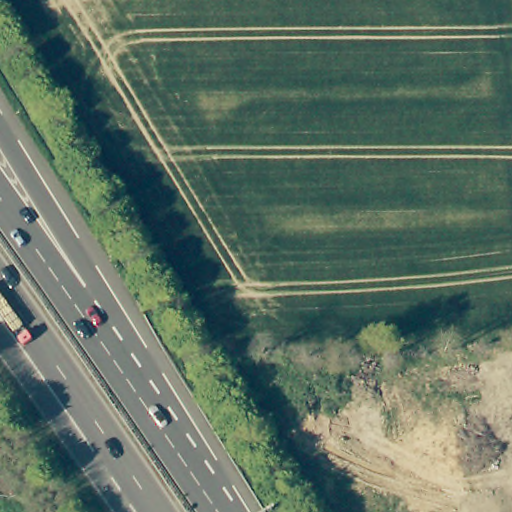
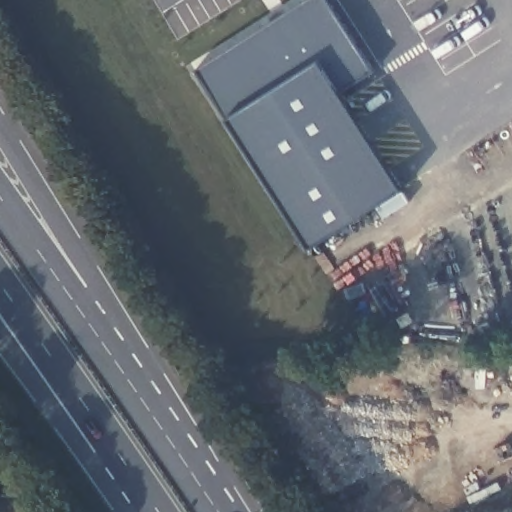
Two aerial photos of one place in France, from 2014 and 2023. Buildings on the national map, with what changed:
new [(338,0),(374,61),(339,81),(398,182),(303,238),(195,54),(287,0),(338,0)]

